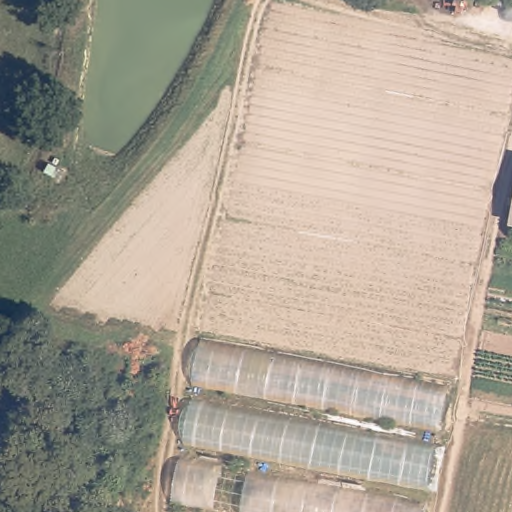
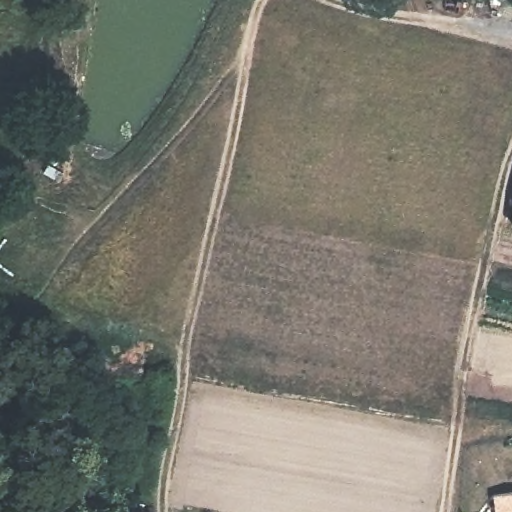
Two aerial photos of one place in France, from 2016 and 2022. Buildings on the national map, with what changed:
demolished [(172,499),(204,341),(455,385),(431,512),(182,512),(185,502),(172,499)]
new [(431,490),(184,445),(193,399),(440,445),(431,490)]
new [(512,492),(512,512),(496,512),(494,495),(512,492)]

